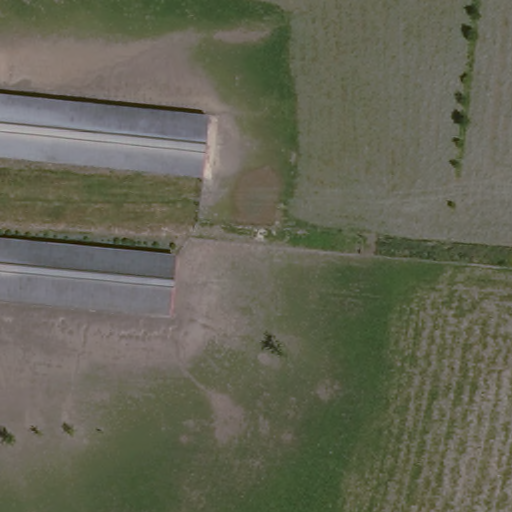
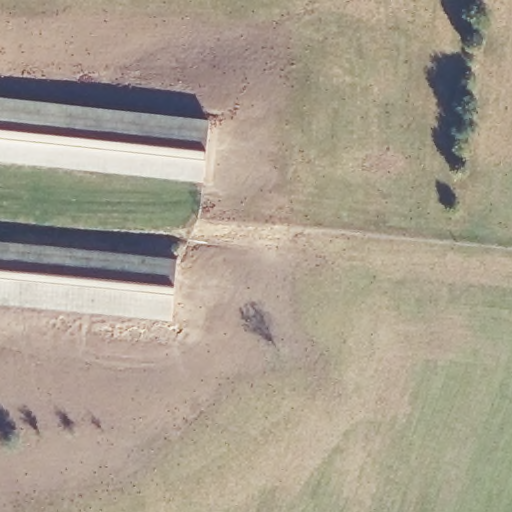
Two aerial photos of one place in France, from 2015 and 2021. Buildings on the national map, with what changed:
unchanged [(188,168),(0,151),(0,97),(193,114),(188,168)]
unchanged [(171,308),(0,292),(0,238),(176,254),(171,308)]

